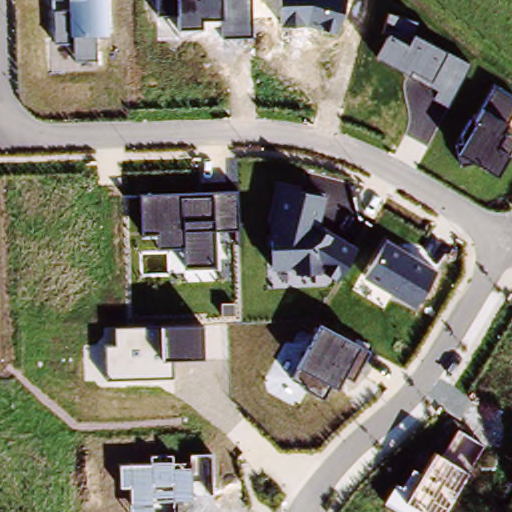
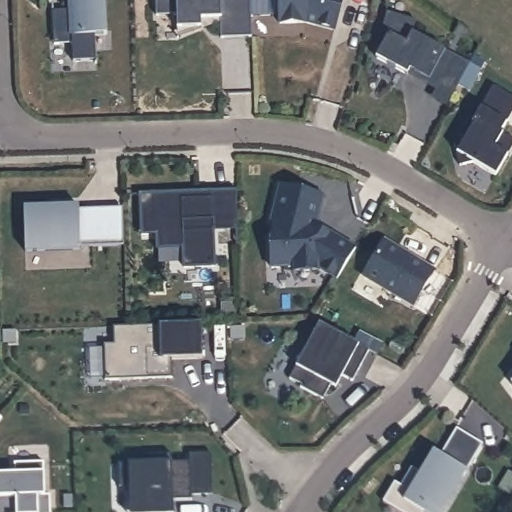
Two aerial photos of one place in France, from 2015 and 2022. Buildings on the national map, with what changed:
unchanged [(108,34),(96,35),(97,60),(72,61),(72,42),(55,42),(54,0),(106,0),(108,34)]
unchanged [(252,34),(220,35),(220,18),(202,20),(201,27),(176,27),(177,13),(156,14),(156,0),(251,0),(252,34)]
unchanged [(336,30),(305,24),(279,25),(279,0),(344,0),(336,30)]
unchanged [(446,105),(431,97),(435,89),(378,55),(391,32),(408,43),(413,33),(468,62),(446,105)]
unchanged [(502,130),(512,138),(512,144),(505,155),(495,173),(457,151),(481,108),(492,86),(512,97),(512,112),(502,130)]
unchanged [(324,197),(318,226),(354,247),(336,280),(321,271),(293,272),(293,266),(269,266),(270,228),(282,187),(324,197)]
unchanged [(238,228),(214,229),(216,266),(183,267),(183,245),(158,246),(157,232),(142,233),(141,195),(236,189),(238,228)]
new [(79,204),(79,207),(117,206),(118,249),(80,250),(80,253),(25,255),(23,206),(79,204)]
unchanged [(415,304),(366,275),(386,241),(436,270),(415,304)]
unchanged [(202,358),(173,359),(172,376),(106,379),(106,344),(114,343),(115,326),(202,322),(202,358)]
unchanged [(370,350),(354,380),(343,375),(337,387),(331,384),(323,397),(290,380),(299,364),(321,324),(370,350)]
new [(1,418),(0,419),(0,417),(1,418)]
unchanged [(466,471),(443,512),(399,512),(384,502),(394,482),(401,485),(412,465),(422,468),(432,450),(442,455),(457,429),(483,445),(466,471)]
unchanged [(150,455),(172,454),(172,462),(190,462),(190,454),(211,454),(212,493),(191,493),(190,499),(171,499),(171,512),(131,512),(131,486),(119,486),(119,463),(151,463),(150,455)]
new [(13,472),(12,461),(42,461),(43,494),(48,494),(48,512),(0,512),(0,473),(13,472)]

